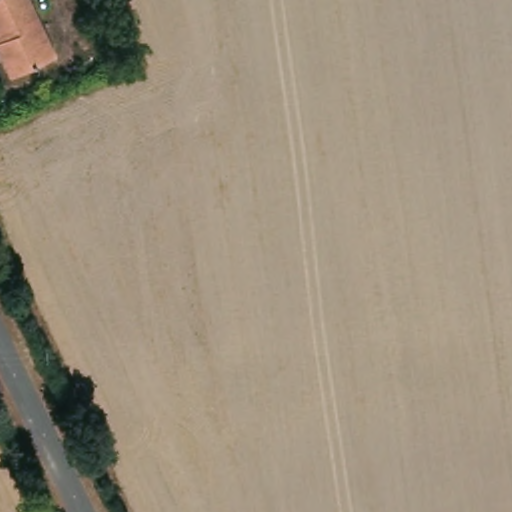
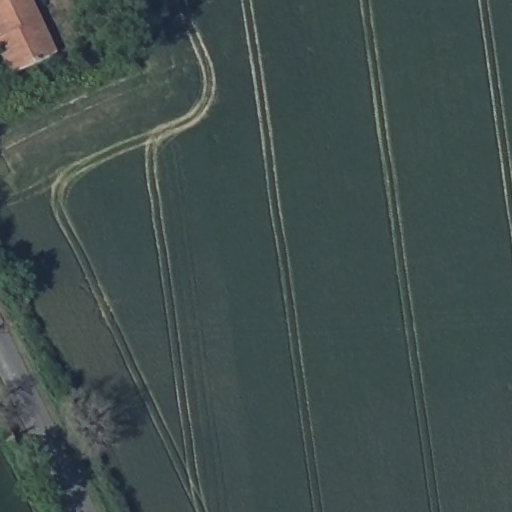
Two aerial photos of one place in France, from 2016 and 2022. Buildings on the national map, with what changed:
unchanged [(0,60),(0,0),(27,0),(52,60),(6,76),(0,60)]

